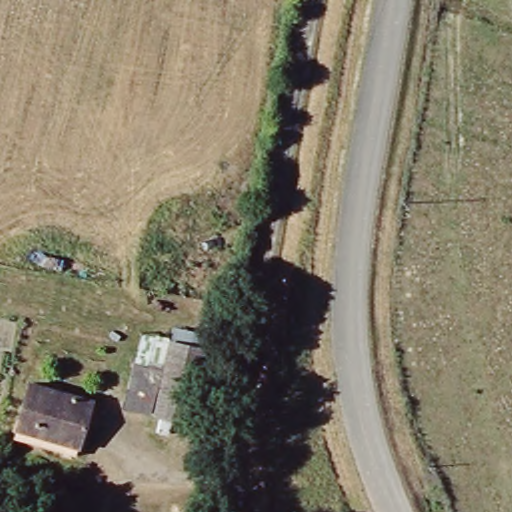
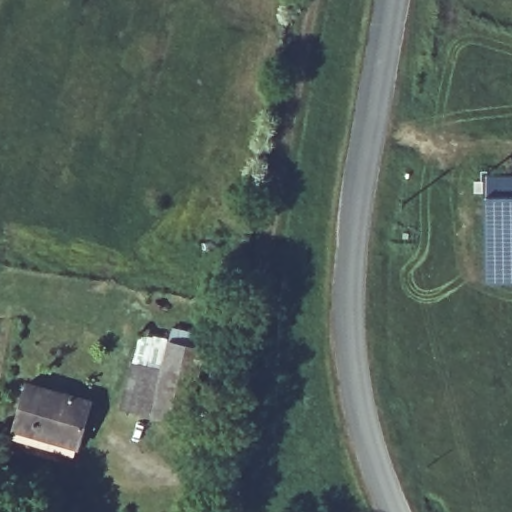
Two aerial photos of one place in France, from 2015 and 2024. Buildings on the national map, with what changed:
new [(512,170),(512,285),(486,285),(486,170),(512,170)]
unchanged [(138,330),(168,336),(157,372),(124,363),(138,330)]
unchanged [(124,363),(157,372),(168,336),(200,345),(180,420),(114,401),(124,363)]
unchanged [(14,428),(26,384),(88,401),(75,446),(14,428)]

